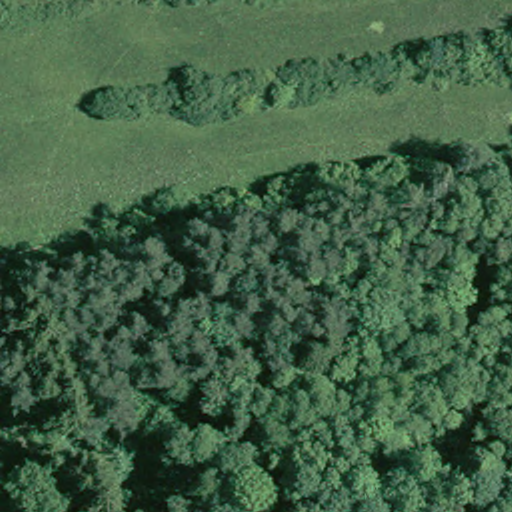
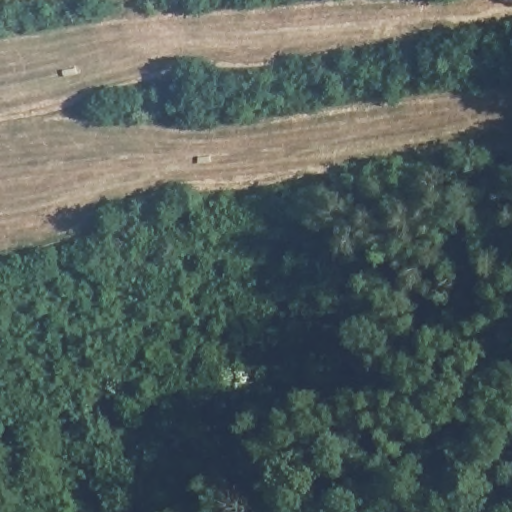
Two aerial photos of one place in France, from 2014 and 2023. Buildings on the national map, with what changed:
[]

